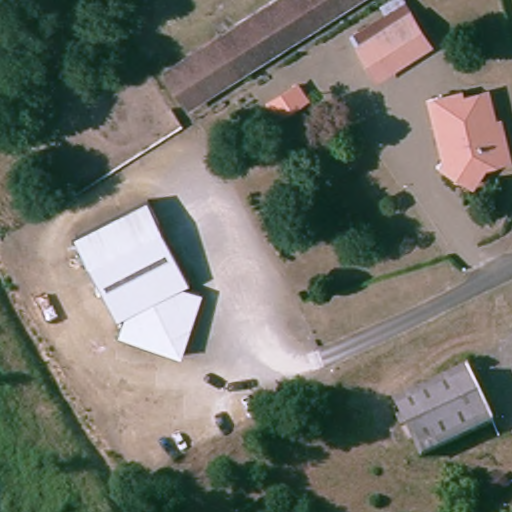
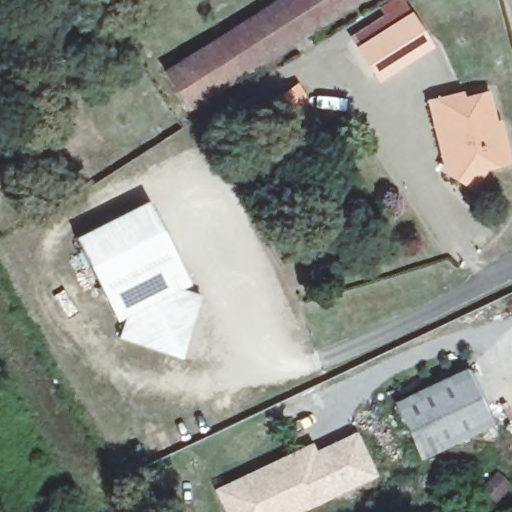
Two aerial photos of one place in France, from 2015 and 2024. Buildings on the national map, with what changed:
unchanged [(367,0),(187,110),(163,70),(277,0),(367,0)]
unchanged [(424,37),(373,68),(354,36),(405,5),(424,37)]
unchanged [(329,109),(299,125),(290,108),(320,92),(329,109)]
unchanged [(504,153),(476,169),(463,185),(456,179),(440,166),(452,150),(449,132),(440,133),(432,99),(458,92),(460,98),(480,93),(487,120),(494,118),(502,149),(504,153)]
unchanged [(85,239),(158,204),(198,287),(188,291),(206,304),(191,367),(133,338),(134,317),(125,321),(85,239)]
unchanged [(493,428),(415,457),(395,402),(472,372),(493,428)]
new [(297,512),(225,512),(213,487),(312,441),(315,449),(356,430),(377,474),(297,512)]

